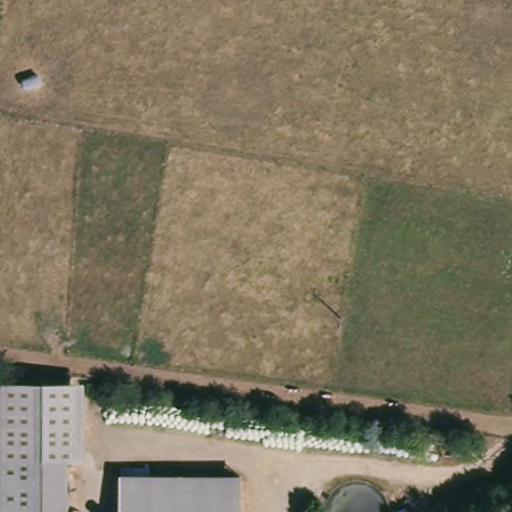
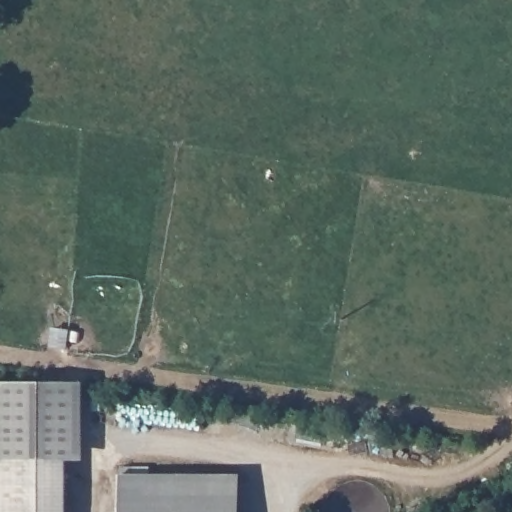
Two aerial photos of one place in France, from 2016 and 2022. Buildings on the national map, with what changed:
unchanged [(0,461),(0,385),(83,385),(85,458),(64,459),(44,460),(0,461)]
unchanged [(65,512),(0,512),(0,461),(64,459),(65,512)]
unchanged [(240,512),(118,512),(117,476),(239,473),(240,512)]

